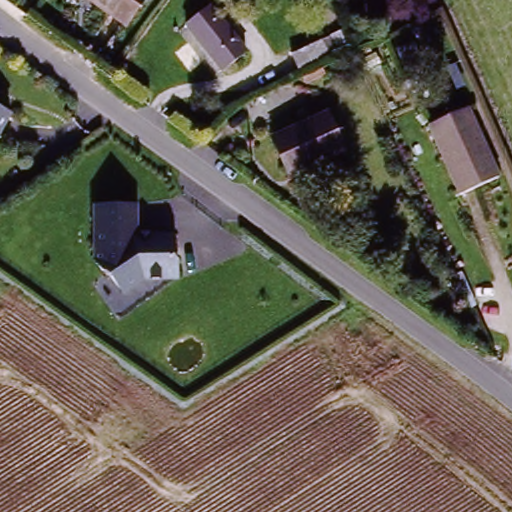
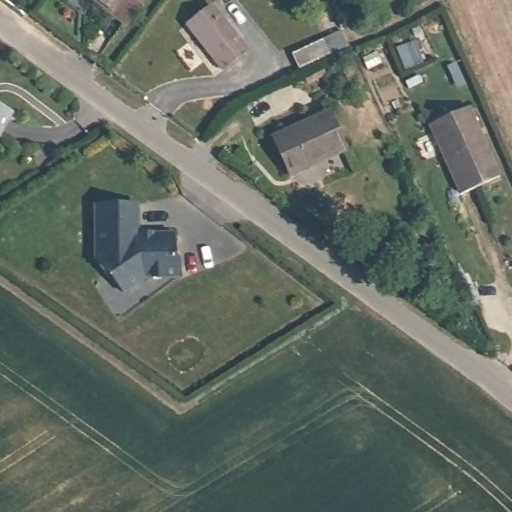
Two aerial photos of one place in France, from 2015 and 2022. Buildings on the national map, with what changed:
unchanged [(90,0),(152,0),(128,33),(100,13),(103,10),(90,0)]
unchanged [(226,78),(189,31),(212,13),(248,60),(226,78)]
unchanged [(326,45),(332,57),(306,69),(301,57),(326,45)]
unchanged [(11,121),(0,141),(0,114),(11,121)]
unchanged [(471,117),(501,185),(462,202),(432,134),(471,117)]
unchanged [(344,159),(289,183),(274,148),(329,124),(344,159)]
unchanged [(137,210),(138,237),(171,238),(173,282),(140,279),(122,294),(92,264),(94,207),(137,210)]

